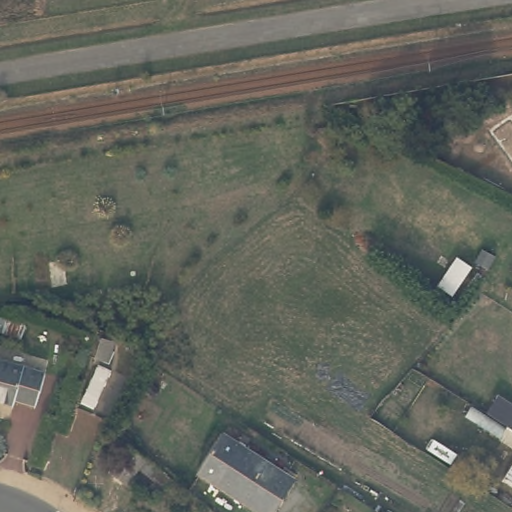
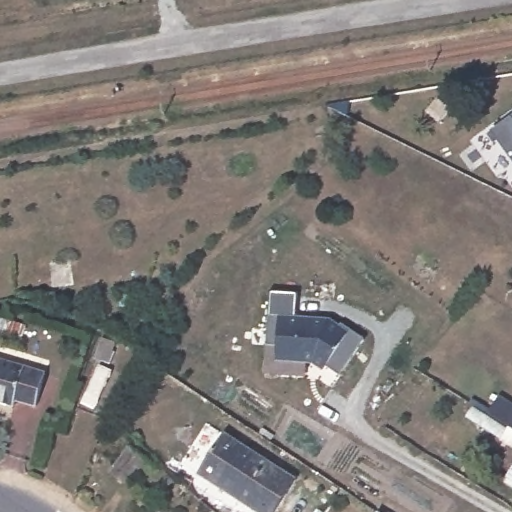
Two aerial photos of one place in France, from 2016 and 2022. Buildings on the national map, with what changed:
new [(512,160),(490,129),(512,114),(512,160)]
new [(338,375),(327,366),(323,370),(312,362),(277,360),(277,346),(266,346),(267,315),(280,315),(327,317),(350,331),(363,339),(338,375)]
unchanged [(47,374),(38,405),(18,401),(16,407),(0,402),(0,361),(47,374)]
unchanged [(512,429),(490,414),(502,397),(512,405),(512,429)]
unchanged [(274,512),(268,512),(197,469),(221,428),(297,474),(274,512)]
unchanged [(170,480),(164,489),(139,471),(126,487),(109,473),(127,448),(170,480)]
unchanged [(368,512),(371,506),(380,512),(368,512)]

